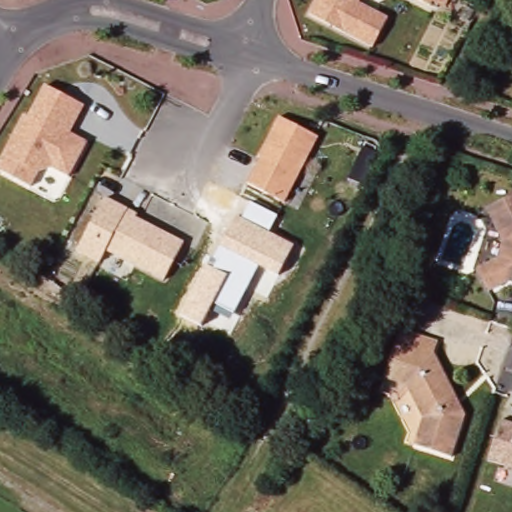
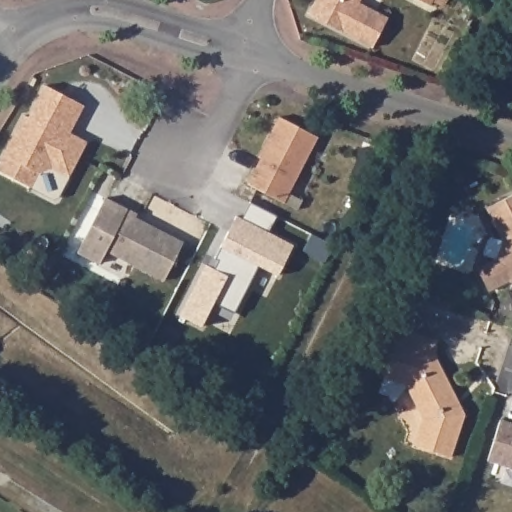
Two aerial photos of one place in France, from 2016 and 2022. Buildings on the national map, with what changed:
unchanged [(361,0),(359,3),(388,18),(373,48),(309,15),(317,0),(361,0)]
unchanged [(420,0),(433,0),(430,5),(420,0)]
unchanged [(23,115),(28,118),(44,85),(83,105),(69,134),(86,143),(68,177),(51,168),(38,172),(30,188),(0,172),(0,161),(23,115)]
unchanged [(247,184),(261,158),(259,156),(279,116),(318,137),(284,203),(247,184)]
unchanged [(164,280),(106,250),(99,264),(77,252),(105,198),(137,214),(135,218),(183,243),(164,280)]
unchanged [(482,268),(502,258),(508,239),(494,212),(494,207),(512,198),(512,281),(494,290),(482,268)]
unchanged [(181,316),(205,266),(210,256),(216,259),(237,217),(243,219),(251,202),(278,215),(270,233),(293,244),(279,274),(259,264),(234,313),(231,319),(210,308),(202,325),(181,316)]
unchanged [(419,444),(428,417),(411,384),(389,377),(393,364),(405,328),(410,329),(443,340),(439,352),(455,383),(470,414),(456,457),(419,444)]
unchanged [(512,423),(512,468),(487,459),(501,419),(512,423)]

